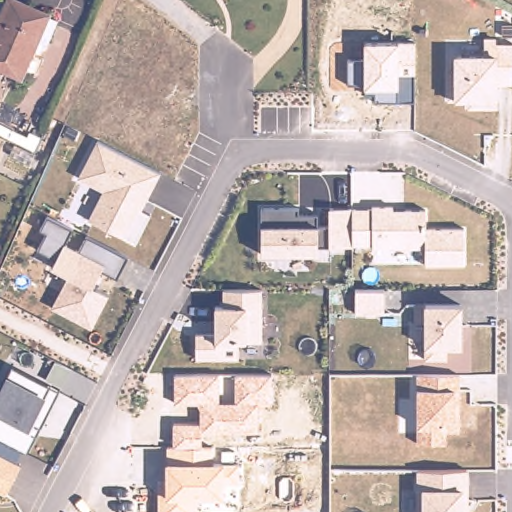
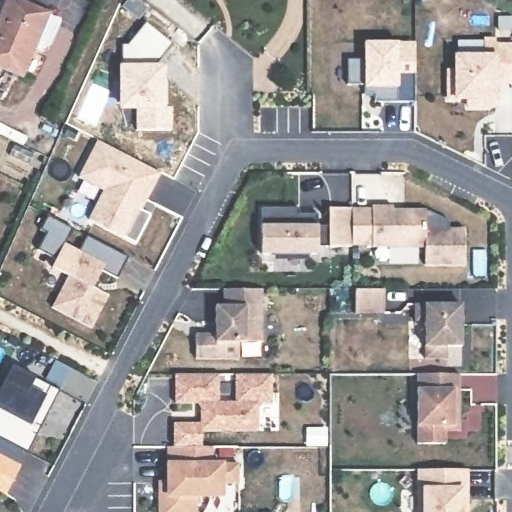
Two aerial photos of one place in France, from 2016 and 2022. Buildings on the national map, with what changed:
unchanged [(0,65),(0,15),(5,4),(6,0),(20,0),(47,11),(43,20),(20,73),(0,65)]
new [(152,66),(165,66),(167,129),(132,129),(133,111),(117,111),(120,45),(126,45),(145,23),(170,44),(152,66)]
unchanged [(497,44),(512,44),(512,84),(498,85),(497,100),(497,109),(466,109),(466,101),(455,101),(446,100),(446,68),(453,69),(453,54),(481,54),(482,37),(497,37),(497,44)]
unchanged [(414,74),(414,101),(375,101),(375,94),(365,95),(364,87),(348,85),(347,59),(364,59),(363,42),(398,42),(415,41),(414,74)]
unchanged [(135,242),(125,237),(89,220),(102,190),(78,178),(97,141),(161,174),(141,210),(149,215),(135,242)]
unchanged [(424,248),(372,247),(372,245),(352,245),(330,245),(318,247),(318,254),(262,254),(261,224),(261,207),(300,207),(300,213),(317,214),(318,226),(328,225),(328,208),(352,208),(372,208),(372,204),(393,204),(394,209),(425,209),(425,229),(464,228),(466,262),(425,264),(424,248)]
unchanged [(94,328),(52,307),(69,276),(51,268),(55,259),(39,250),(47,233),(40,229),(47,217),(72,230),(65,244),(80,252),(88,238),(128,258),(117,277),(102,269),(93,288),(109,297),(94,328)]
unchanged [(215,334),(215,305),(223,305),(223,289),(262,288),(263,340),(248,342),(239,342),(239,359),(195,359),(195,334),(215,334)]
unchanged [(355,313),(356,289),(383,289),(383,314),(355,313)]
unchanged [(415,303),(423,303),(463,304),(461,347),(446,346),(446,358),(425,357),(423,346),(424,324),(415,322),(415,303)]
unchanged [(8,376),(13,366),(59,391),(26,452),(22,449),(15,463),(0,455),(0,391),(8,376)]
unchanged [(158,481),(166,481),(166,463),(166,447),(173,447),(172,423),(194,423),(200,423),(199,403),(174,404),(174,374),(220,374),(220,401),(236,401),(234,373),(273,374),(272,402),(257,403),(258,431),(202,432),(201,447),(213,447),(212,462),(225,462),(239,461),(239,483),(225,483),(224,497),(197,497),(197,512),(158,512),(158,481)]
unchanged [(417,425),(417,388),(417,374),(461,374),(461,433),(447,433),(447,443),(416,442),(417,425)]
unchanged [(15,463),(21,466),(6,495),(0,492),(0,455),(15,463)]
unchanged [(416,469),(468,469),(469,512),(417,512),(416,469)]

